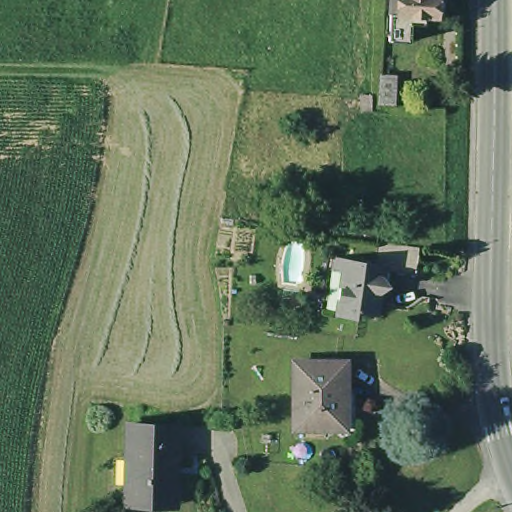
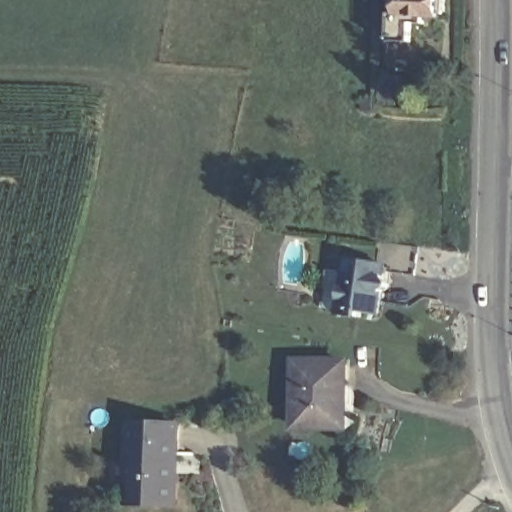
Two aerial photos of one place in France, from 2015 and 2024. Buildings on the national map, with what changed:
unchanged [(409,44),(388,44),(389,0),(444,0),(443,15),(438,15),(438,18),(424,17),(424,25),(409,25),(409,44)]
unchanged [(397,105),(380,104),(381,80),(397,80),(397,105)]
unchanged [(411,243),(419,244),(414,272),(382,267),(383,262),(376,261),(379,238),(411,243)]
unchanged [(381,273),(391,283),(379,287),(375,311),(354,307),(354,312),(334,309),(339,282),(329,281),(334,255),(376,261),(383,262),(382,267),(381,273)]
unchanged [(343,396),(337,396),(336,427),(293,427),(294,363),(344,364),(343,396)]
unchanged [(166,498),(123,497),(125,471),(124,451),(124,421),(177,423),(175,463),(174,498),(166,498)]

